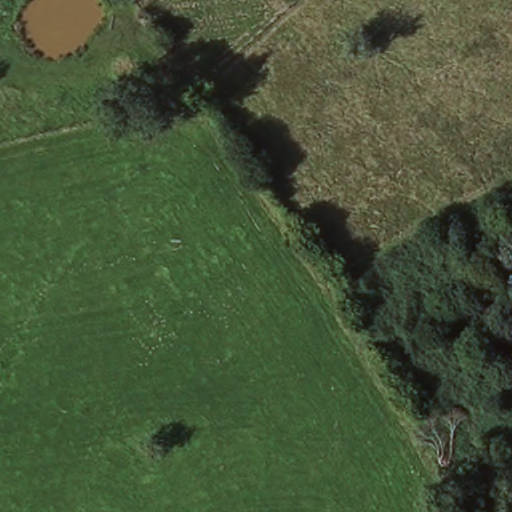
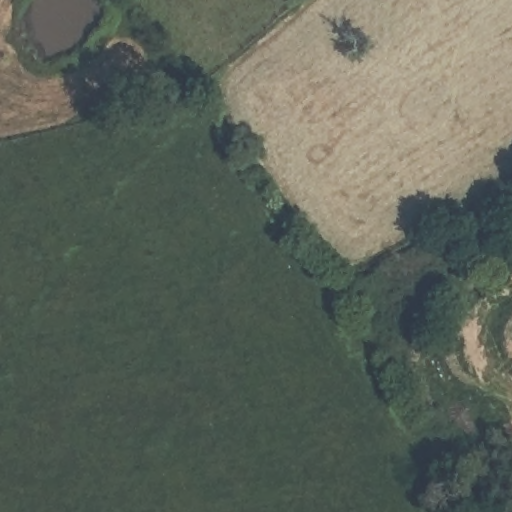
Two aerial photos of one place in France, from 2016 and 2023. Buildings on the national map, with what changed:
[]

